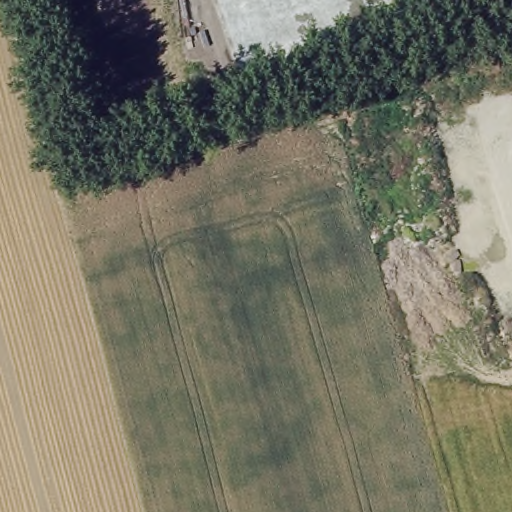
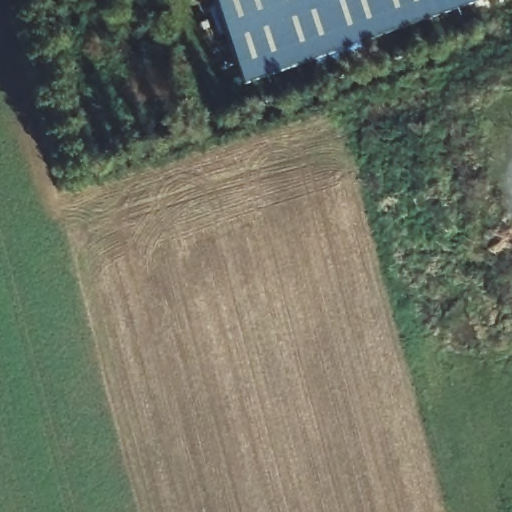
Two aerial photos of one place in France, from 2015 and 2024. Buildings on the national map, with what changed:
new [(246,89),(215,0),(433,0),(440,20),(246,89)]
new [(482,0),(483,4),(440,20),(433,0),(482,0)]

